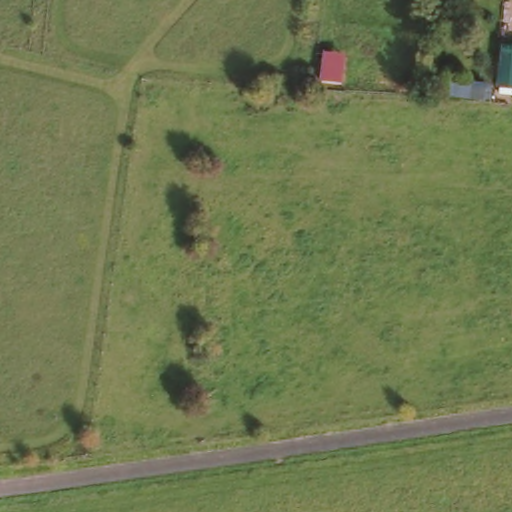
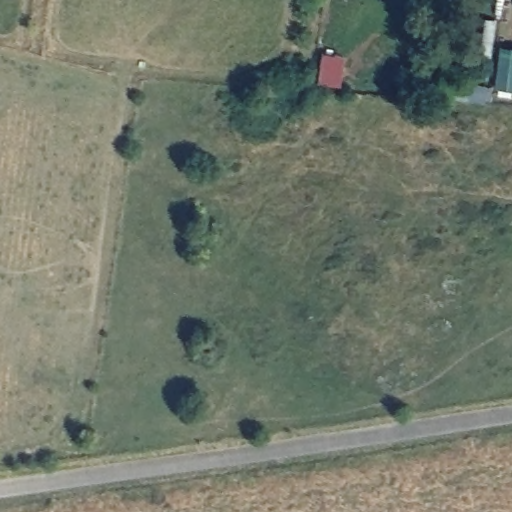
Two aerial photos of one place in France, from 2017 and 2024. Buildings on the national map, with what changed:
unchanged [(512,98),(493,96),(492,103),(445,100),(447,78),(493,82),(495,51),(512,53),(512,98)]

